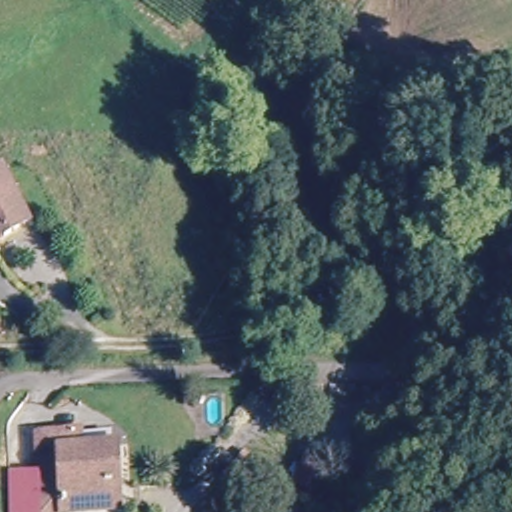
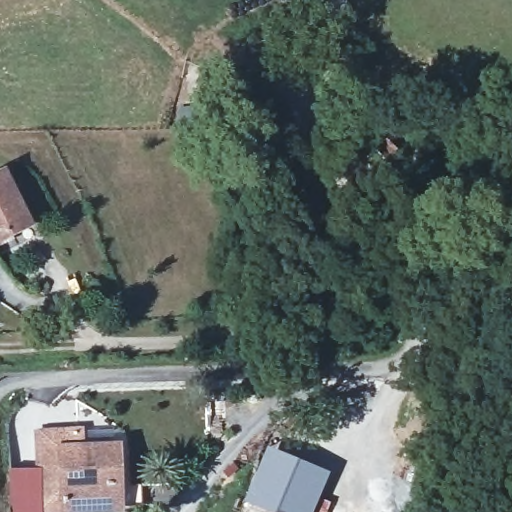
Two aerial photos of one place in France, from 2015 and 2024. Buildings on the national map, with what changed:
unchanged [(3,173),(29,228),(0,242),(0,174),(3,173)]
new [(372,397),(339,397),(339,382),(372,381),(372,397)]
unchanged [(31,480),(31,469),(31,436),(72,434),(75,453),(111,454),(112,470),(113,512),(55,512),(54,480),(31,480)]
new [(330,472),(320,497),(330,503),(327,512),(268,512),(242,502),(266,444),(330,472)]
unchanged [(31,480),(54,480),(55,512),(8,512),(7,470),(31,469),(31,480)]

